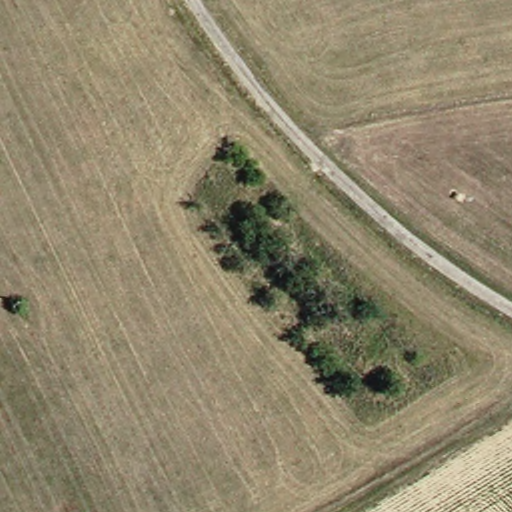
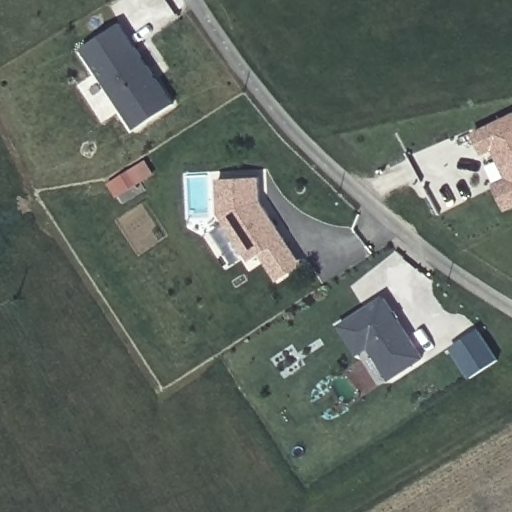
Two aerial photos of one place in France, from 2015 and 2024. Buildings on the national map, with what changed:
new [(122,24),(176,104),(137,131),(84,51),(122,24)]
new [(492,187),(505,180),(491,148),(480,153),(471,134),(512,116),(512,206),(502,210),(492,187)]
new [(262,174),(262,198),(287,237),(253,263),(223,217),(220,177),(262,174)]
new [(381,296),(422,359),(389,381),(367,349),(355,356),(337,325),(381,296)]
new [(475,331),(494,360),(467,377),(448,348),(475,331)]

